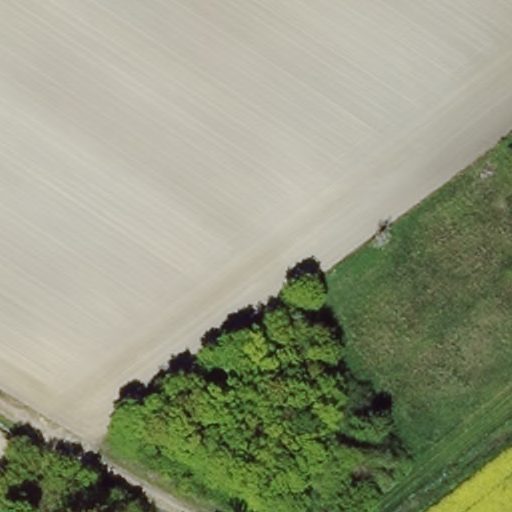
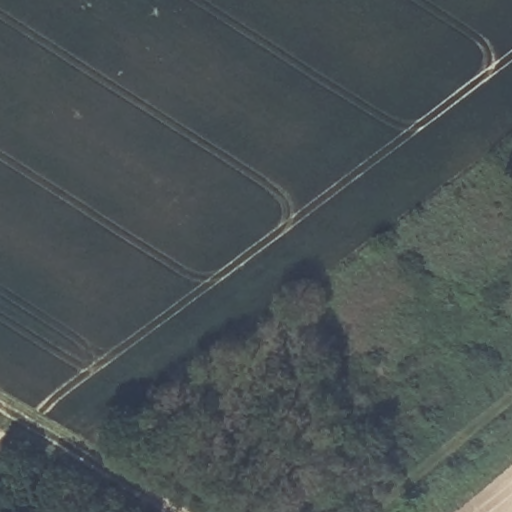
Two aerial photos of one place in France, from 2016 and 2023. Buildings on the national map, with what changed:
[]

